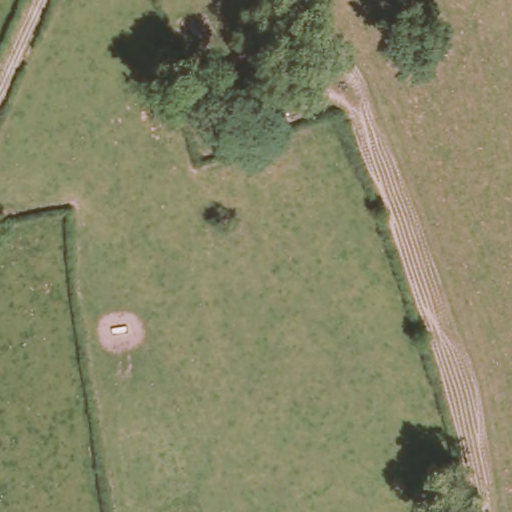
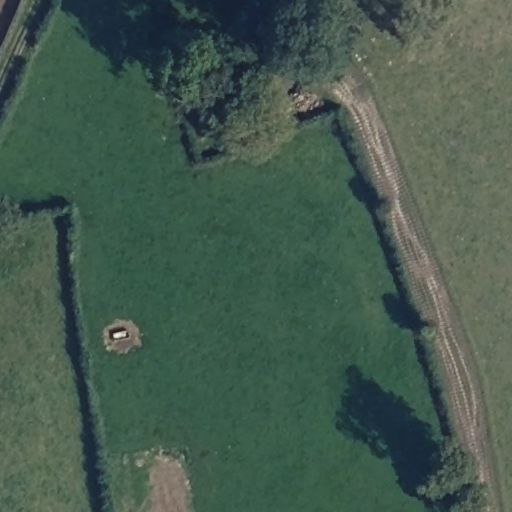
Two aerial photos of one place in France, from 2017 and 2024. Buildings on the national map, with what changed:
unchanged [(272,34),(230,50),(221,27),(264,11),(272,34)]

